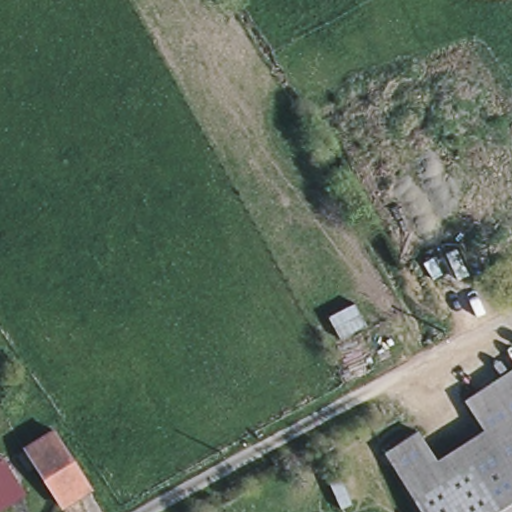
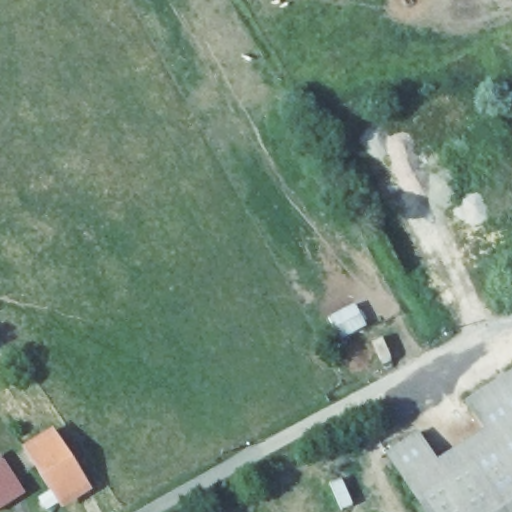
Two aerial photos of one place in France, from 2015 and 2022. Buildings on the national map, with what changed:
unchanged [(421,512),(384,454),(418,430),(436,459),(482,431),(465,403),(512,372),(512,512),(421,512)]
unchanged [(55,429),(88,483),(59,502),(25,448),(55,429)]
unchanged [(11,480),(0,487),(0,466),(2,465),(11,480)]
unchanged [(0,503),(0,490),(5,499),(0,503)]

